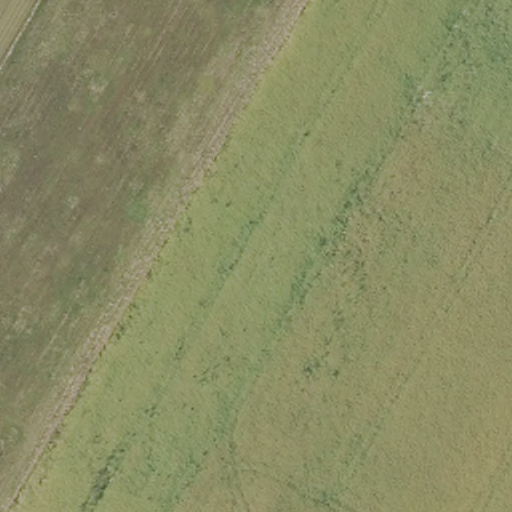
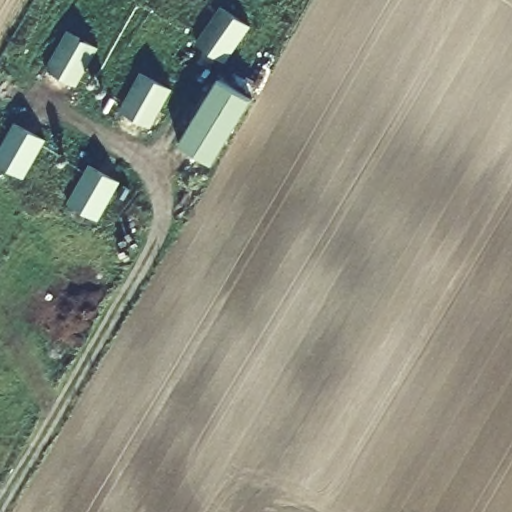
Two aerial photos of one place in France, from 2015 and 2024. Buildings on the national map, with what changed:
new [(67,27),(100,45),(77,85),(48,67),(67,27)]
new [(140,71),(173,88),(151,129),(121,111),(140,71)]
new [(189,142),(183,139),(220,79),(246,94),(211,152),(213,153),(208,161),(186,147),(189,142)]
new [(14,120),(46,137),(25,178),(0,163),(0,150),(14,120)]
new [(87,162),(120,180),(98,220),(68,202),(87,162)]

